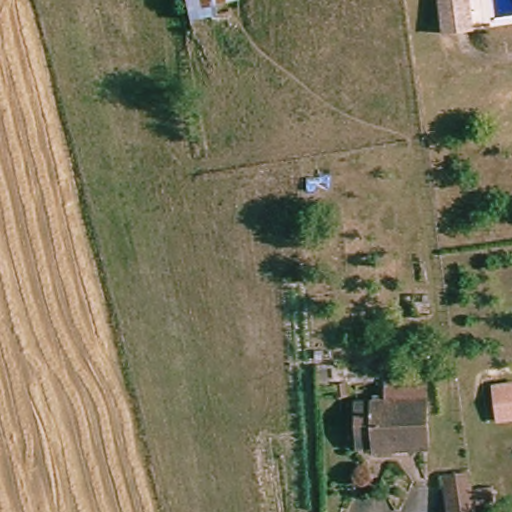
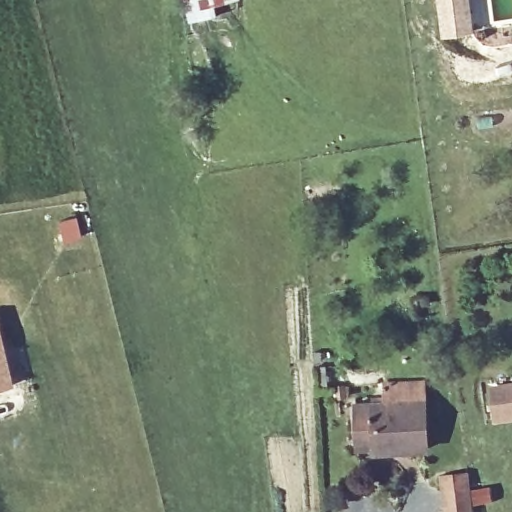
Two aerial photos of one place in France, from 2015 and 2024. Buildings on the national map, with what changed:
unchanged [(215,6),(214,18),(188,21),(183,0),(237,0),(237,1),(215,6)]
unchanged [(471,0),(475,30),(442,35),(438,0),(471,0)]
new [(0,388),(0,332),(13,384),(0,388)]
unchanged [(377,442),(357,442),(358,400),(387,401),(387,378),(427,379),(427,401),(427,450),(377,449),(377,442)]
unchanged [(490,386),(512,382),(512,421),(495,424),(490,386)]
unchanged [(448,493),(446,476),(467,473),(469,490),(473,512),(450,512),(448,493)]

